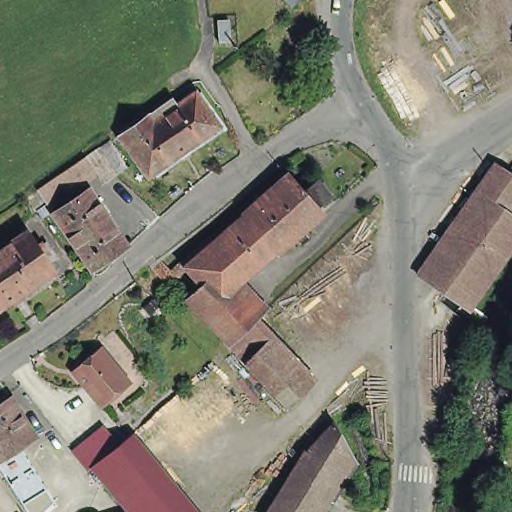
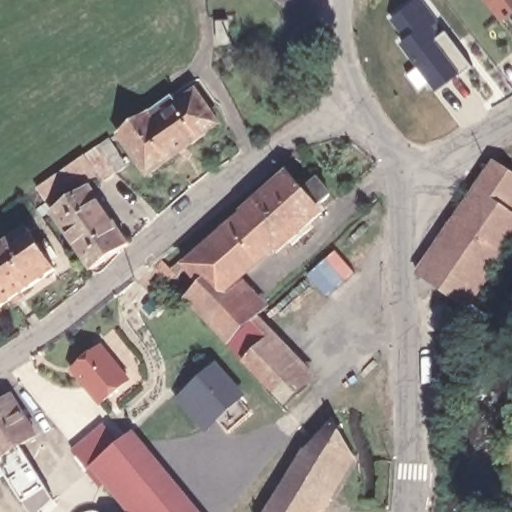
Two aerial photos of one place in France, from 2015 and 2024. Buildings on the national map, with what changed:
unchanged [(294,4),(285,11),(273,0),(297,0),(294,4)]
new [(467,66),(434,89),(381,14),(417,0),(420,0),(467,66)]
new [(497,19),(481,0),(512,0),(512,8),(497,19)]
unchanged [(217,46),(215,27),(227,26),(228,45),(217,46)]
unchanged [(217,127),(147,178),(117,136),(159,108),(171,100),(176,107),(194,95),(217,127)]
unchanged [(37,191),(83,158),(97,150),(107,143),(125,169),(115,176),(103,186),(94,174),(47,207),(37,191)]
unchanged [(495,270),(466,312),(417,278),(494,167),(512,180),(512,246),(495,270)]
unchanged [(286,179),(300,195),(315,183),(328,199),(315,210),(319,215),(274,255),(270,251),(240,218),(286,179)]
unchanged [(90,273),(50,215),(62,207),(88,190),(126,247),(90,273)]
unchanged [(270,251),(232,286),(217,270),(199,286),(183,268),(240,218),(270,251)]
unchanged [(0,251),(26,232),(55,273),(0,313),(0,251)]
unchanged [(320,401),(297,422),(242,365),(225,347),(226,347),(182,300),(199,286),(217,270),(232,286),(259,316),(250,325),(266,343),(295,374),(320,401)]
unchanged [(97,350),(125,380),(97,405),(70,374),(97,350)]
new [(247,400),(210,434),(174,391),(210,363),(247,400)]
unchanged [(47,482),(22,500),(10,486),(0,474),(0,405),(14,396),(37,435),(17,447),(32,472),(39,468),(47,482)]
unchanged [(310,512),(280,494),(304,454),(305,455),(332,424),(349,458),(345,460),(314,512),(310,512)]
unchanged [(132,512),(103,476),(95,465),(109,453),(112,450),(133,434),(197,512),(132,512)]
unchanged [(310,512),(269,512),(280,494),(310,512)]

